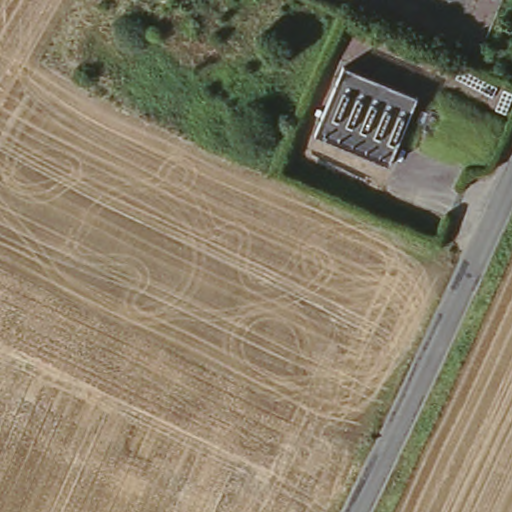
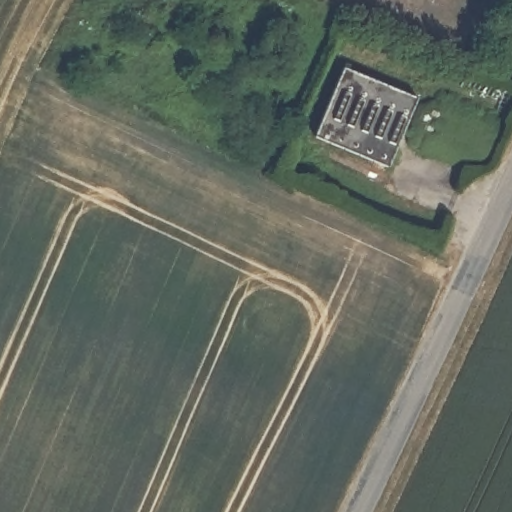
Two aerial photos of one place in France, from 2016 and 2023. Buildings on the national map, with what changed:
unchanged [(392,169),(317,140),(345,65),(416,94),(400,140),(392,169)]

